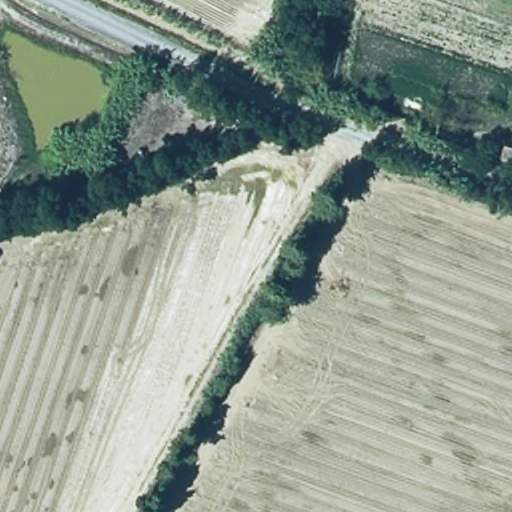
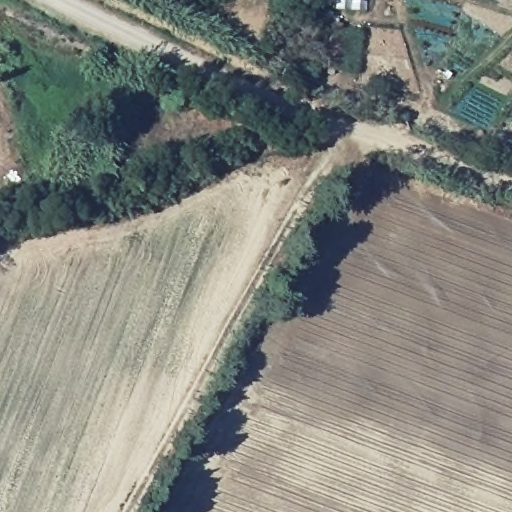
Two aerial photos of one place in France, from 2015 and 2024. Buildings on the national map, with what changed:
unchanged [(512,151),(512,170),(500,166),(503,149),(512,151)]

